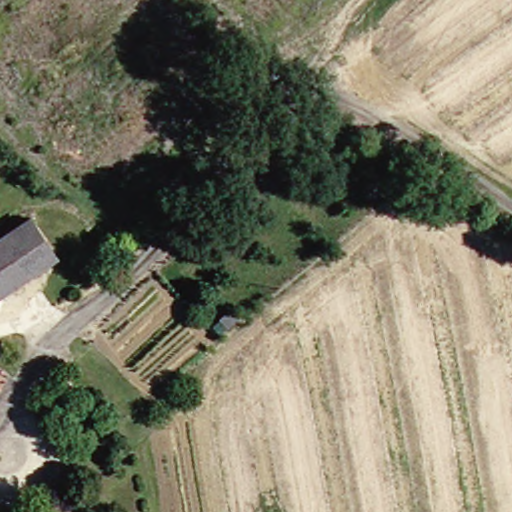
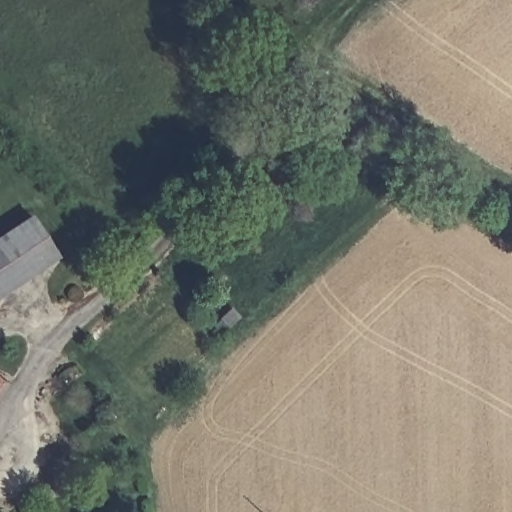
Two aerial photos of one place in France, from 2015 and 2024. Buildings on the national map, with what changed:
unchanged [(48,247),(17,271),(0,250),(0,230),(22,215),(48,247)]
unchanged [(0,285),(0,250),(17,271),(0,285)]
unchanged [(63,342),(74,351),(47,386),(34,375),(63,342)]
unchanged [(0,383),(0,378),(2,379),(0,383)]

